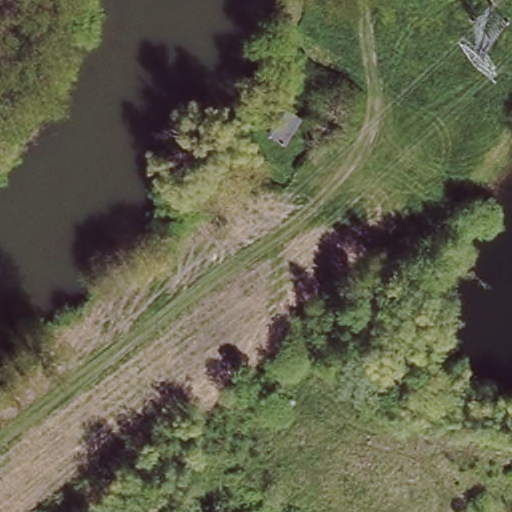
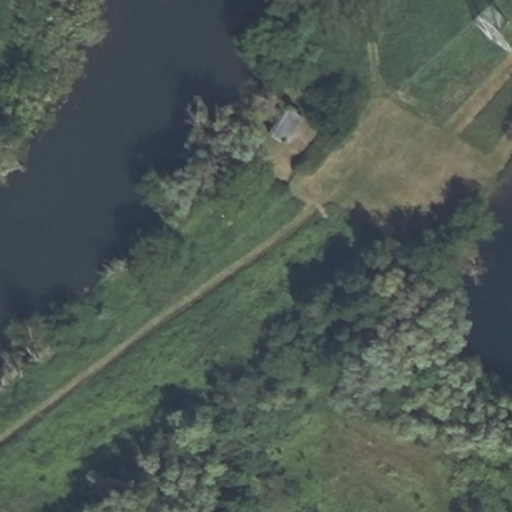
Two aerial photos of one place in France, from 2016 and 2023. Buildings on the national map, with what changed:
unchanged [(292,124),(274,152),(257,142),(275,114),(292,124)]

